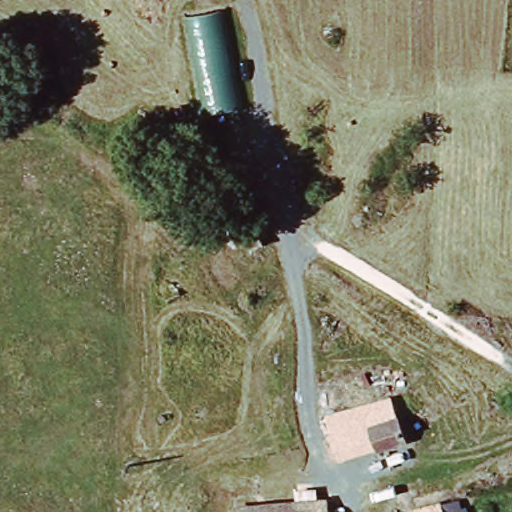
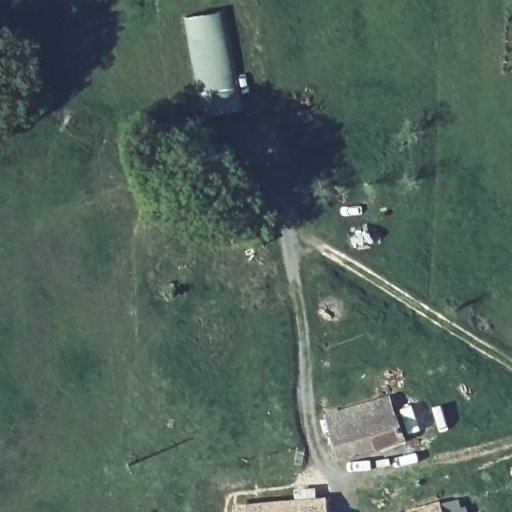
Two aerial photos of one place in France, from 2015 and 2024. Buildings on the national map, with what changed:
unchanged [(222,6),(244,106),(207,116),(186,14),(222,6)]
unchanged [(376,451),(375,447),(337,457),(327,416),(388,397),(403,440),(376,451)]
unchanged [(228,508),(326,500),(328,512),(228,512),(228,508)]
unchanged [(409,511),(440,503),(442,512),(409,512),(409,511)]

